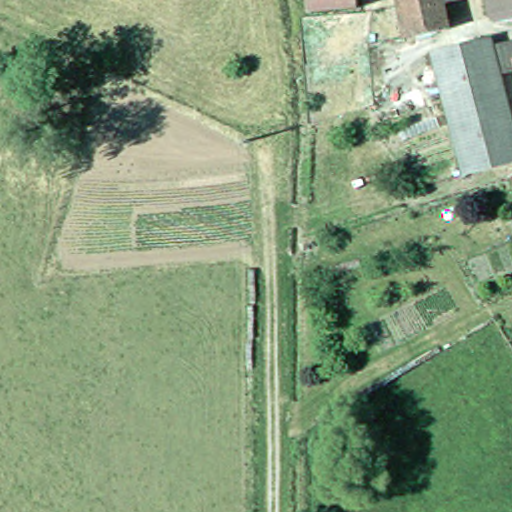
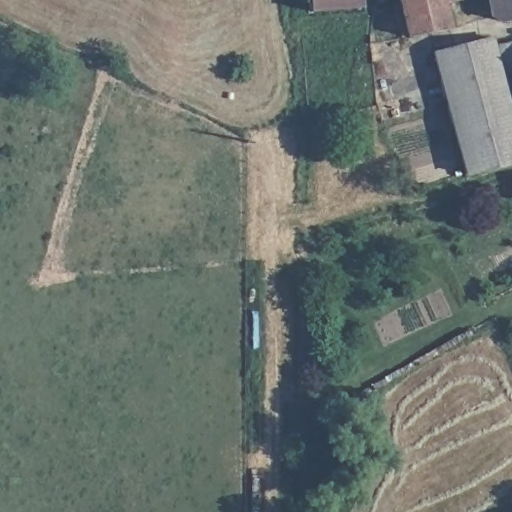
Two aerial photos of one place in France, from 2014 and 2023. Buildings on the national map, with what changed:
unchanged [(360,8),(309,11),(308,0),(359,0),(360,8)]
unchanged [(407,37),(400,0),(450,0),(442,2),(448,31),(407,37)]
unchanged [(499,21),(492,17),(489,0),(512,0),(512,18),(499,21)]
unchanged [(465,179),(432,59),(491,44),(493,52),(512,47),(512,75),(500,79),(512,128),(512,166),(465,179)]
unchanged [(511,181),(512,180),(512,185),(511,181)]

